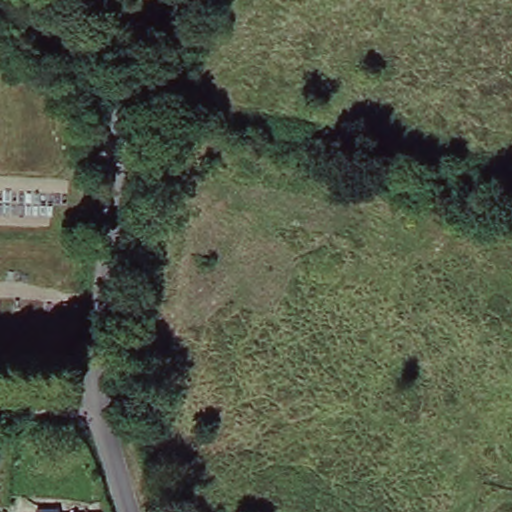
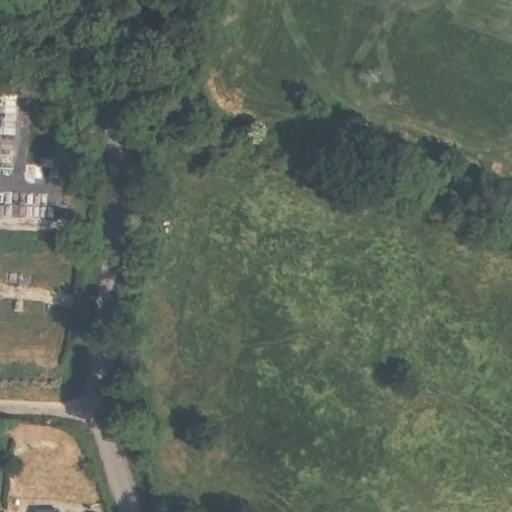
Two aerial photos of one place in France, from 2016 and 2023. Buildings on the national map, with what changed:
unchanged [(57,507),(57,512),(36,512),(36,507),(57,507)]

